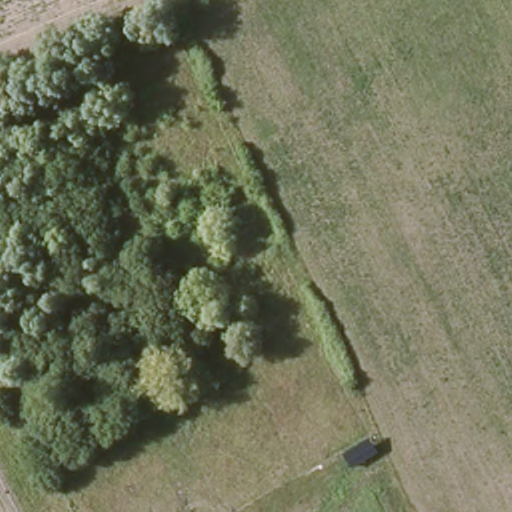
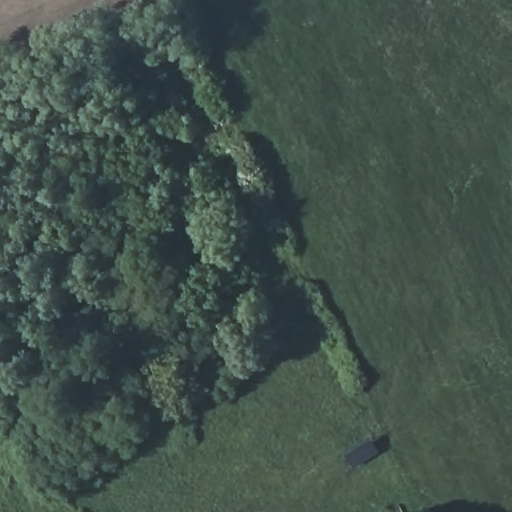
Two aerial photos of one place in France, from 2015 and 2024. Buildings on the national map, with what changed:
[]

